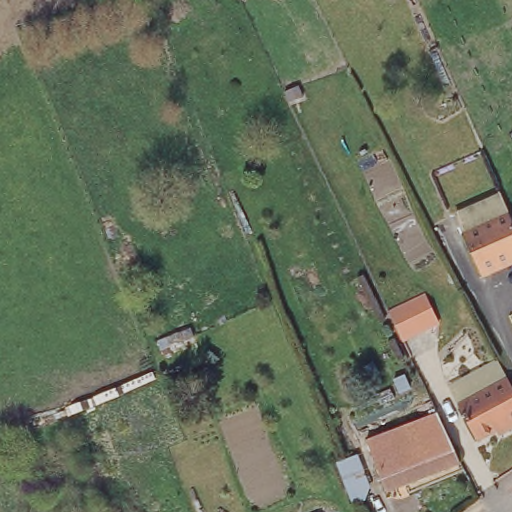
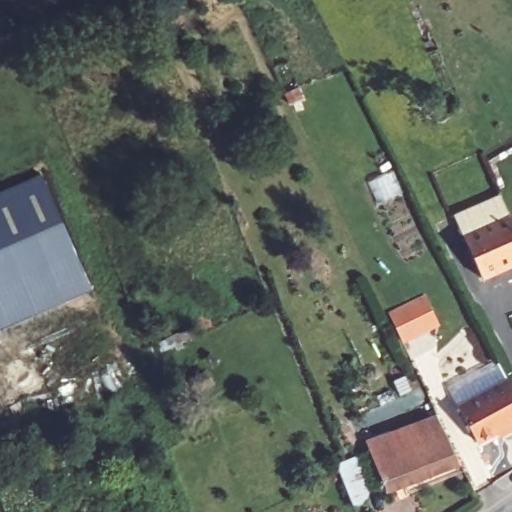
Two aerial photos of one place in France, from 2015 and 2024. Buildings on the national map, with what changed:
new [(92,289),(0,328),(0,192),(42,174),(92,289)]
unchanged [(490,200),(503,194),(512,215),(512,223),(467,240),(456,213),(490,200)]
unchanged [(512,223),(512,275),(486,285),(467,240),(512,223)]
unchanged [(429,296),(442,323),(406,339),(392,312),(429,296)]
unchanged [(511,436),(481,451),(471,431),(463,416),(455,399),(502,375),(503,376),(512,391),(512,439),(511,436)]
unchanged [(389,496),(379,472),(372,457),(367,445),(440,414),(445,426),(451,438),(462,464),(389,496)]
unchanged [(357,454),(361,462),(370,486),(366,500),(353,504),(337,462),(357,454)]

